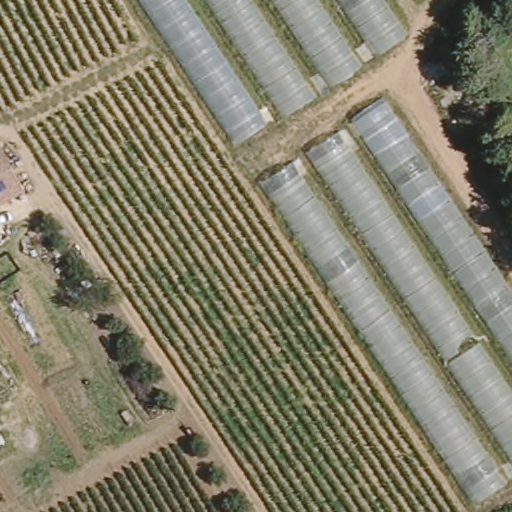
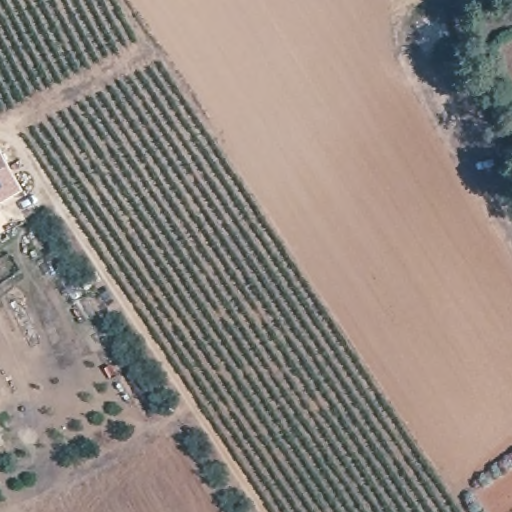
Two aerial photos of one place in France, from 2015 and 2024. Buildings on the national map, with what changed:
demolished [(512,291),(512,496),(491,512),(485,512),(151,0),(397,0),(415,23),(364,70),(512,291)]
unchanged [(22,189),(0,202),(0,153),(22,189)]

